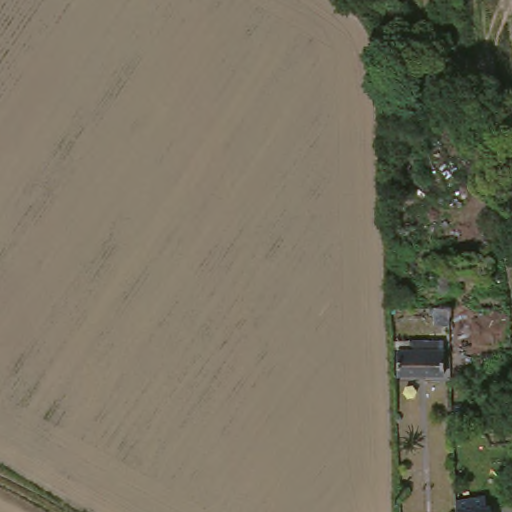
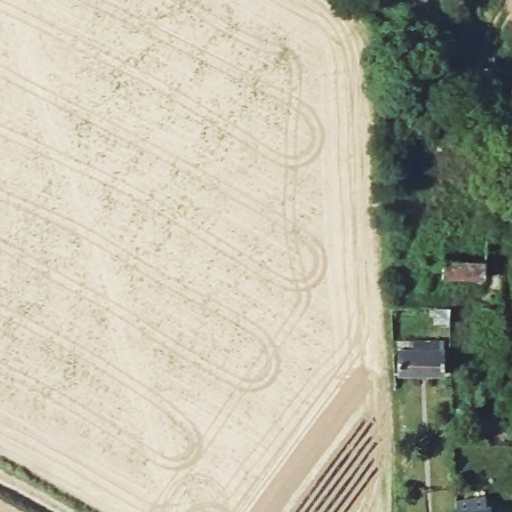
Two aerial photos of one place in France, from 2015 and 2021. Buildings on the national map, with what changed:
unchanged [(461,277),(417,277),(417,256),(461,256),(461,277)]
unchanged [(416,325),(417,296),(429,295),(429,325),(416,325)]
unchanged [(437,383),(401,386),(399,366),(436,365),(437,383)]
unchanged [(478,495),(480,503),(486,501),(489,512),(454,512),(469,507),(466,498),(478,495)]

